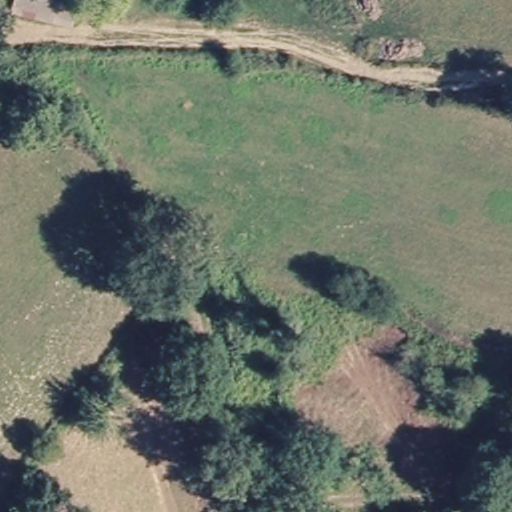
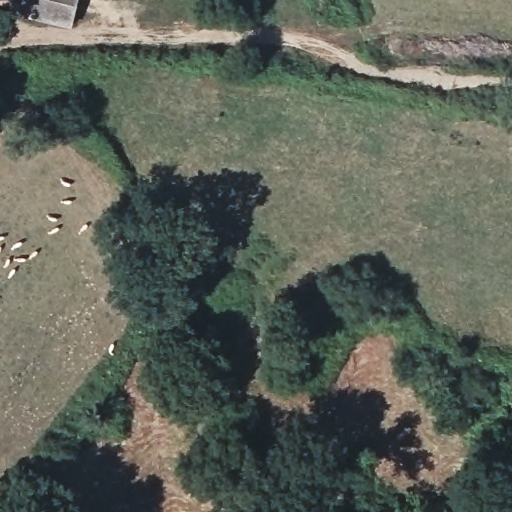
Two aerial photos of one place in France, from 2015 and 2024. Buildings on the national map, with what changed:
unchanged [(0,0),(37,0),(34,12),(0,2),(0,0)]
unchanged [(32,17),(34,12),(37,0),(93,0),(85,30),(32,17)]

